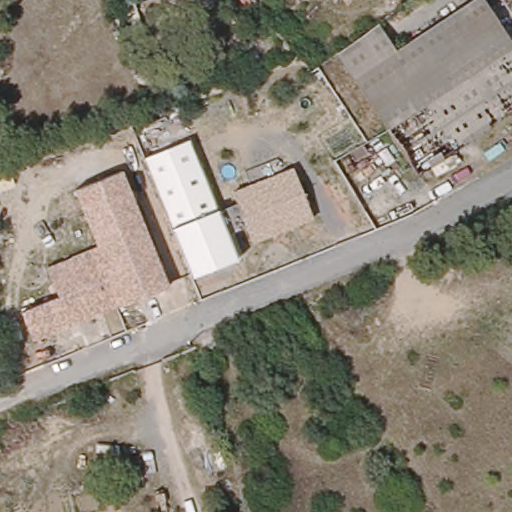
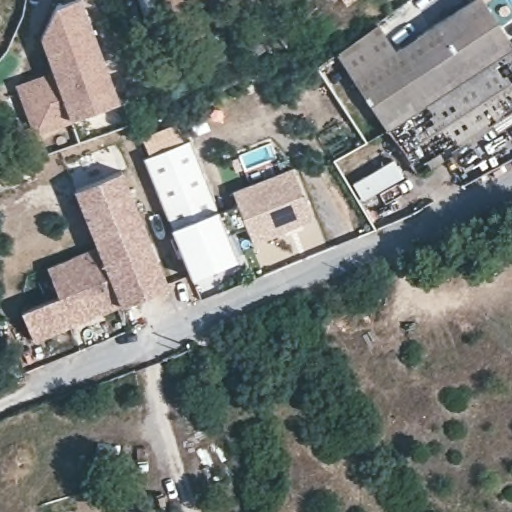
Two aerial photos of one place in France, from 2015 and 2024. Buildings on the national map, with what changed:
new [(41,34),(56,1),(58,0),(81,0),(118,97),(36,128),(19,82),(54,69),(41,34)]
new [(153,0),(165,29),(152,34),(139,0),(153,0)]
unchanged [(395,48),(472,0),(483,0),(512,46),(512,148),(473,174),(457,147),(415,172),(336,53),(376,25),(395,48)]
new [(488,0),(493,0),(490,2),(488,0)]
unchanged [(173,227),(145,158),(189,140),(217,210),(236,202),(232,192),(293,167),(313,217),(252,242),(246,227),(226,235),(236,258),(192,276),(173,227)]
unchanged [(21,311),(58,297),(45,267),(96,246),(73,189),(123,170),(167,286),(120,303),(32,340),(21,311)]

